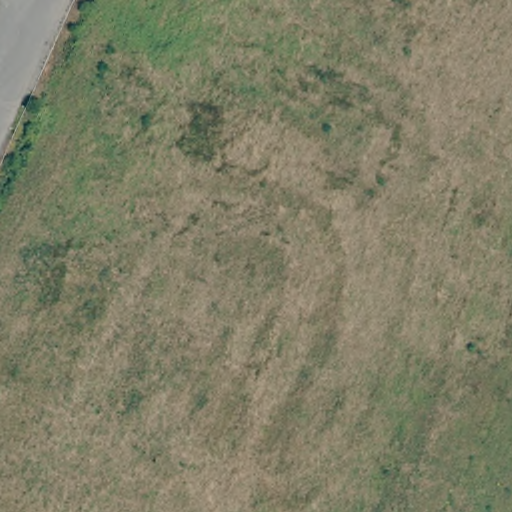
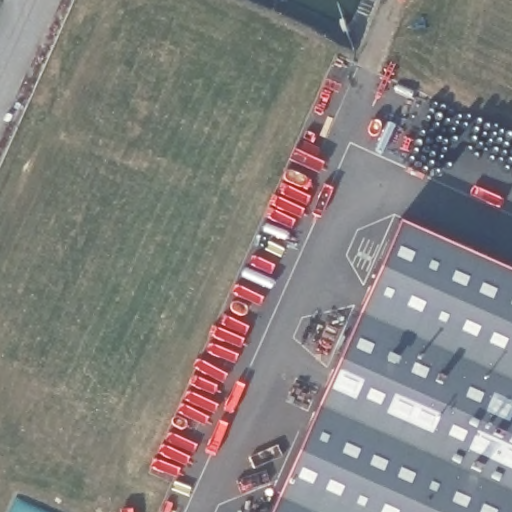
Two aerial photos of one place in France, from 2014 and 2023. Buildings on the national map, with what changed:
new [(512,273),(512,512),(269,512),(398,222),(512,273)]

